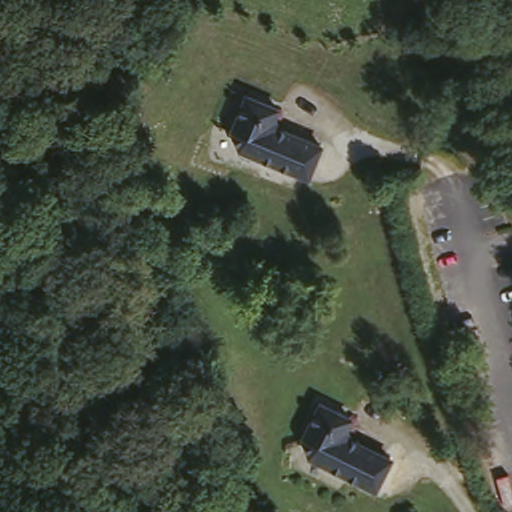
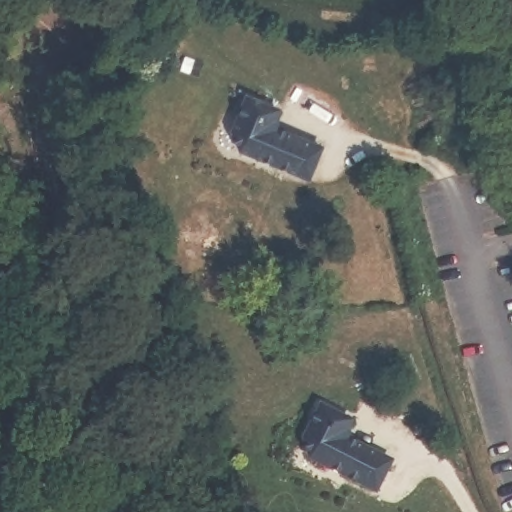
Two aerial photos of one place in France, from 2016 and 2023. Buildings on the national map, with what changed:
unchanged [(275,104),(272,111),(277,125),(321,144),(307,175),(237,146),(231,124),(245,91),(275,104)]
unchanged [(310,455),(302,435),(321,399),(349,414),(344,424),(348,435),(391,458),(375,487),(310,455)]

